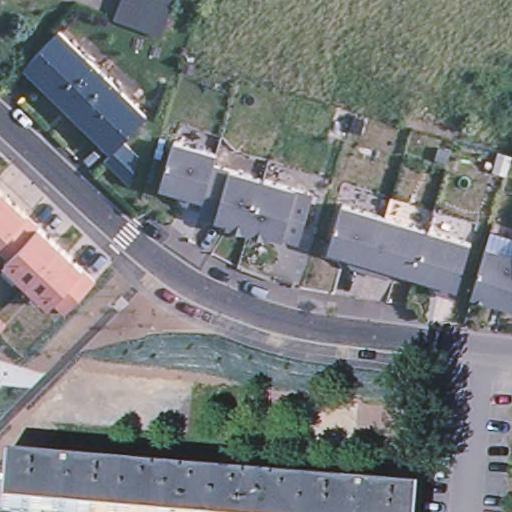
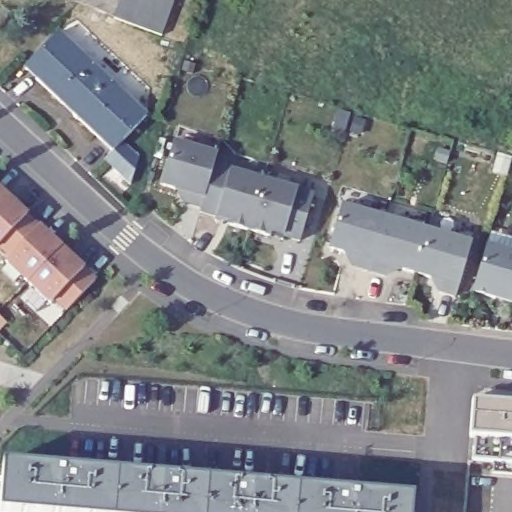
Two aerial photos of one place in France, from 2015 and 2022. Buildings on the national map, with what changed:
unchanged [(163,36),(120,21),(125,0),(175,0),(177,1),(163,36)]
unchanged [(175,0),(177,0),(177,1),(175,0)]
unchanged [(130,181),(105,156),(112,148),(25,64),(60,30),(145,113),(122,138),(137,153),(130,181)]
unchanged [(173,137),(217,150),(213,161),(201,201),(185,196),(187,187),(161,179),(173,137)]
unchanged [(200,206),(201,201),(213,161),(263,176),(249,225),(227,218),(215,215),(217,211),(200,206)]
unchanged [(270,231),(249,225),(263,176),(313,190),(300,235),(283,231),(282,235),(270,231)]
unchanged [(54,299),(50,306),(5,263),(7,258),(0,251),(0,189),(85,268),(96,280),(65,311),(54,299)]
unchanged [(341,205),(385,218),(369,270),(352,265),(355,255),(329,248),(341,205)]
unchanged [(389,265),(386,275),(369,270),(385,218),(427,231),(415,273),(389,265)]
unchanged [(427,231),(428,231),(471,244),(455,295),(439,290),(442,281),(415,273),(427,231)]
unchanged [(497,297),(495,303),(472,297),(486,251),(512,258),(512,302),(497,297)]
new [(485,392),(512,396),(512,405),(484,403),(485,392)]
new [(473,402),(493,404),(493,409),(498,409),(497,426),(501,426),(500,439),(495,438),(495,452),(474,450),(475,439),(470,439),(473,402)]
new [(474,450),(495,452),(495,438),(500,439),(501,426),(497,426),(498,409),(493,409),(493,404),(512,406),(512,464),(473,462),(474,450)]
unchanged [(0,508),(3,466),(117,475),(115,512),(0,512),(0,508)]
unchanged [(208,482),(206,512),(115,512),(117,475),(208,482)]
unchanged [(300,490),(298,512),(206,512),(208,482),(300,490)]
unchanged [(300,490),(413,500),(412,512),(298,512),(300,490)]

